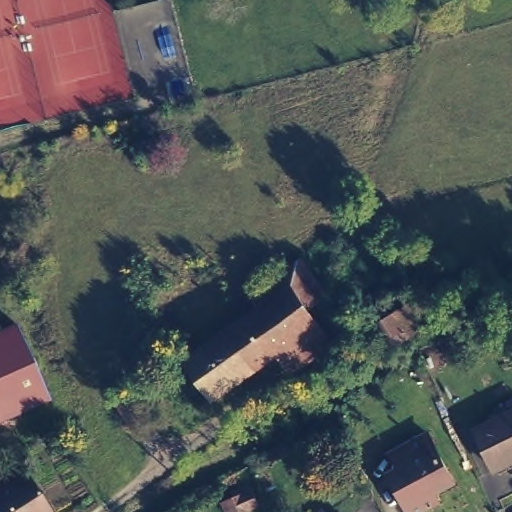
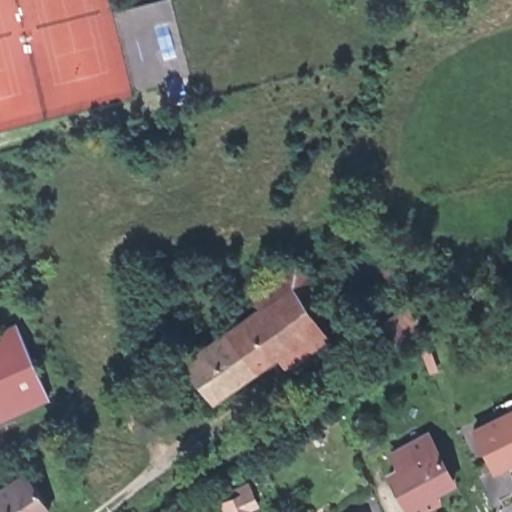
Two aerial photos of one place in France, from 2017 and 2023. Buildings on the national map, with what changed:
unchanged [(266,307),(257,295),(303,258),(330,295),(312,308),(335,340),(293,369),(281,352),(213,397),(188,361),(195,356),(266,307)]
unchanged [(424,329),(387,352),(373,331),(410,307),(424,329)]
unchanged [(51,402),(0,423),(0,334),(17,327),(51,402)]
unchanged [(150,422),(135,433),(118,407),(133,397),(150,422)]
unchanged [(489,465),(470,424),(512,407),(512,456),(489,465)]
unchanged [(452,481),(405,502),(389,466),(435,446),(452,481)]
unchanged [(52,508),(46,512),(0,512),(0,489),(29,472),(52,508)]
unchanged [(246,512),(224,512),(222,508),(241,501),(246,512)]

